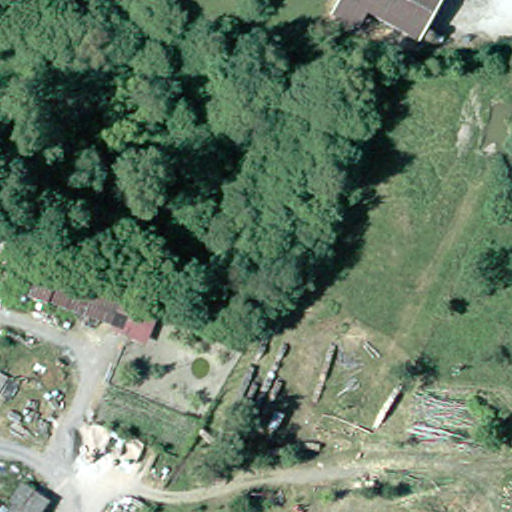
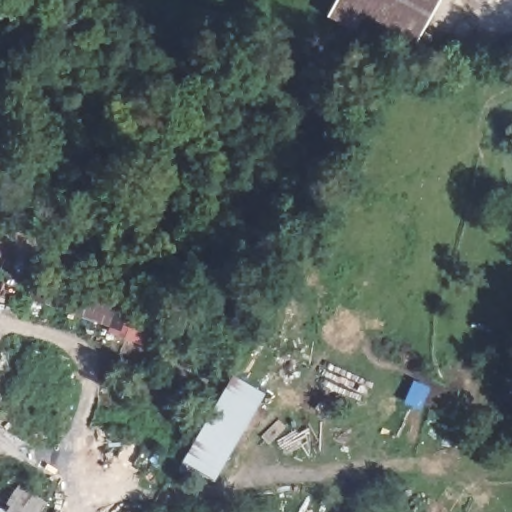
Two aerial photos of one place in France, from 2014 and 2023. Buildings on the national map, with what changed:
unchanged [(355,4),(345,22),(319,7),(322,0),(482,0),(480,4),(451,57),(355,4)]
new [(185,465),(235,378),(266,397),(215,485),(185,465)]
unchanged [(9,482),(43,500),(35,512),(0,512),(0,501),(9,482)]

